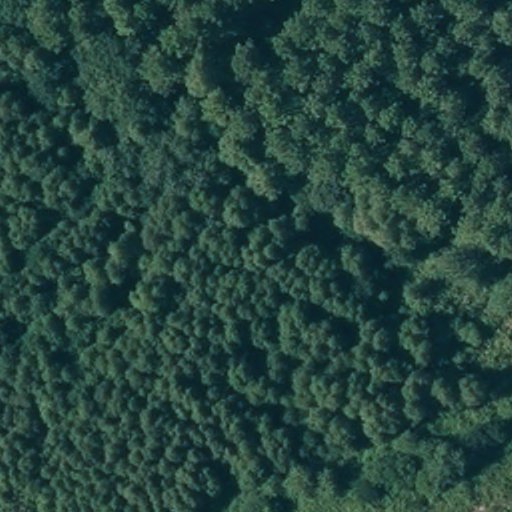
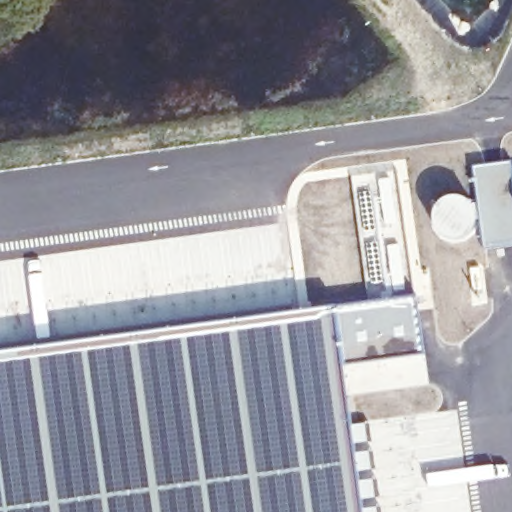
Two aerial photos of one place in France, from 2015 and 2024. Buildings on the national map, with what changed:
new [(512,161),(512,246),(483,249),(480,224),(474,205),(477,204),(472,166),(512,161)]
new [(432,212),(436,205),(446,197),(452,196),(460,196),(469,200),(474,205),(480,224),(473,230),(467,238),(462,240),(452,241),(446,240),(439,235),(434,229),(432,221),(432,212)]
new [(415,298),(426,356),(343,366),(363,512),(0,512),(0,352),(335,307),(415,298)]

